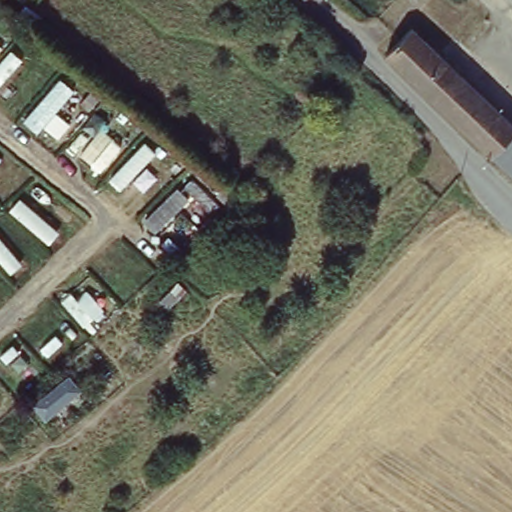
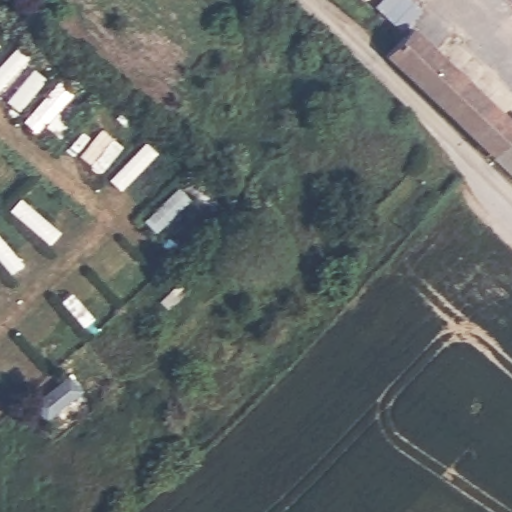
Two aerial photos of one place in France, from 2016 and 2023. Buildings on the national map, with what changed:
unchanged [(512,123),(512,133),(492,155),(450,116),(407,76),(385,54),(410,27),(512,123)]
unchanged [(512,133),(512,175),(492,155),(512,133)]
unchanged [(202,168),(234,196),(216,216),(184,184),(202,168)]
unchanged [(174,187),(189,200),(157,233),(142,219),(174,187)]
unchanged [(67,373),(80,389),(46,420),(29,404),(67,373)]

